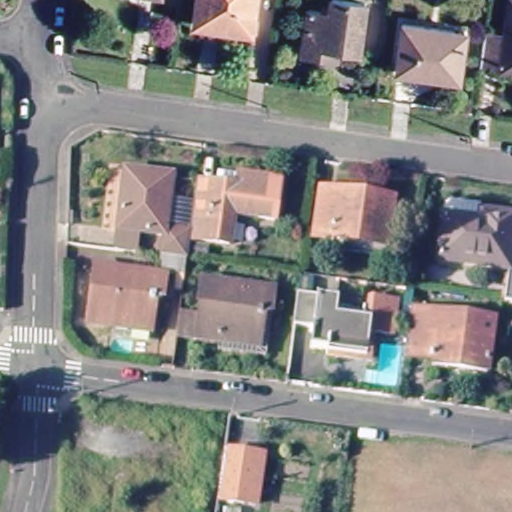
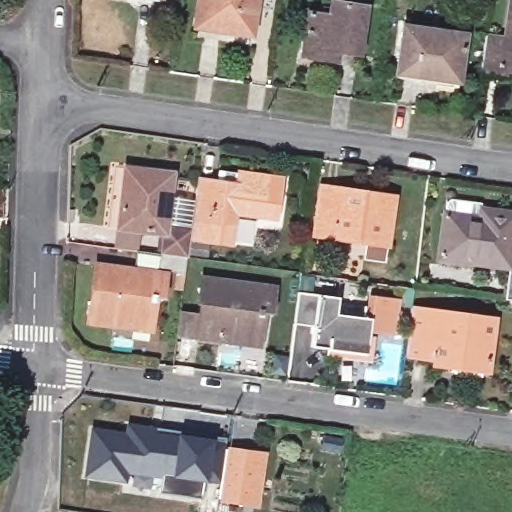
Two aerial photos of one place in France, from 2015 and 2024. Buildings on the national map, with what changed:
unchanged [(157,0),(157,1),(145,0),(157,0)]
unchanged [(227,38),(195,34),(200,0),(254,0),(249,29),(247,36),(227,33),(227,38)]
unchanged [(300,54),(307,10),(326,12),(328,0),(332,0),(365,5),(357,52),(337,49),(336,59),(326,57),(300,54)]
unchanged [(510,5),(512,6),(512,79),(478,75),(484,38),(502,41),(510,5)]
unchanged [(450,82),(395,73),(402,29),(463,38),(459,62),(456,83),(450,82)]
unchanged [(127,170),(172,177),(166,227),(192,231),(191,237),(188,258),(162,255),(161,255),(164,235),(138,231),(136,251),(117,249),(120,229),(127,170)]
unchanged [(198,180),(240,186),(242,174),(282,180),(276,220),(238,215),(234,242),(191,237),(192,231),(198,180)]
unchanged [(322,188),(395,199),(390,245),(317,234),(322,188)]
unchanged [(476,266),(440,260),(446,217),(447,207),(452,204),(482,208),(482,213),(512,218),(512,307),(497,305),(500,272),(476,268),(476,266)]
unchanged [(134,328),(91,322),(99,267),(160,275),(162,255),(188,258),(186,275),(167,274),(164,294),(154,293),(151,322),(150,330),(134,328)]
unchanged [(272,286),(270,303),(272,303),(265,351),(217,344),(218,335),(199,331),(197,335),(178,331),(181,306),(201,310),(205,276),(272,286)]
unchanged [(323,358),(324,350),(309,348),(312,328),(293,325),(298,291),(337,298),(336,312),(365,317),(368,297),(395,301),(390,333),(369,330),(367,344),(364,364),(323,358)]
unchanged [(452,367),(432,365),(432,360),(404,357),(410,314),(411,308),(432,311),(432,313),(492,320),(487,363),(486,372),(452,367)]
new [(160,492),(162,479),(127,475),(126,485),(84,477),(91,428),(125,432),(126,425),(178,435),(215,440),(210,467),(220,467),(218,483),(207,482),(202,482),(202,498),(160,492)]
unchanged [(225,450),(261,455),(254,502),(218,497),(225,450)]

